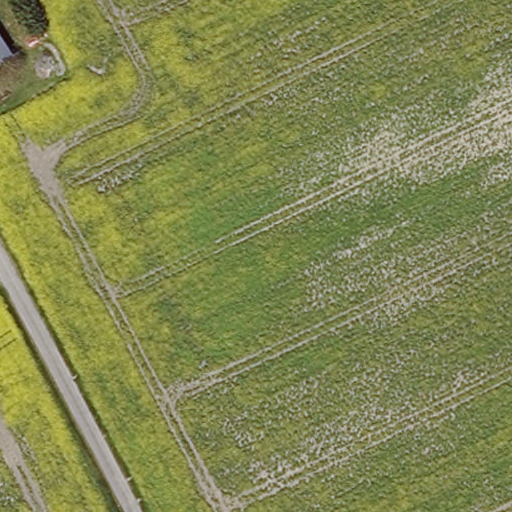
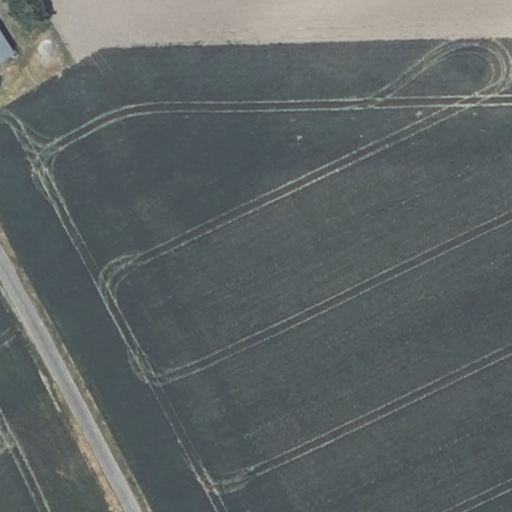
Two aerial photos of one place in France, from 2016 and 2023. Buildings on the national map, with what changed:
unchanged [(0,68),(0,32),(16,57),(0,68)]

